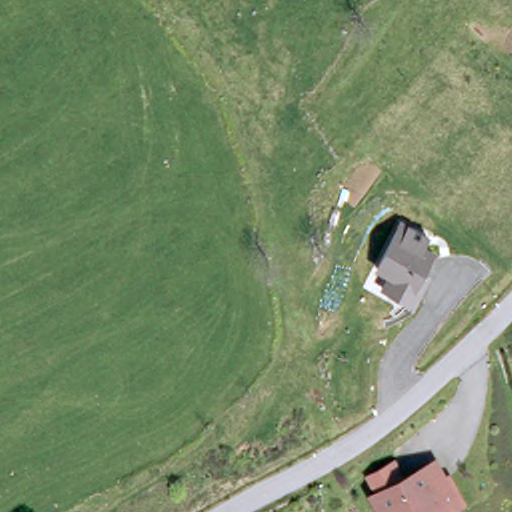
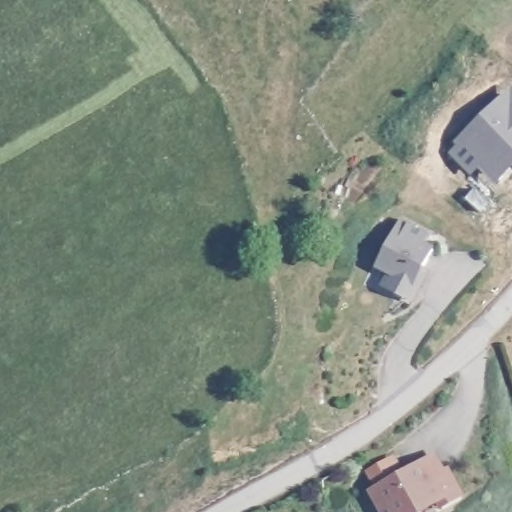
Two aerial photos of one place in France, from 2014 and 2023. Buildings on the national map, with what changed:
new [(512,168),(495,185),(453,138),(510,87),(512,89),(512,168)]
unchanged [(407,222),(430,232),(425,242),(434,248),(425,267),(430,270),(414,306),(380,287),(387,275),(375,269),(401,219),(407,222)]
unchanged [(394,511),(391,512),(384,512),(378,500),(387,496),(377,478),(400,467),(410,484),(441,467),(457,501),(435,512),(395,512),(394,511)]

